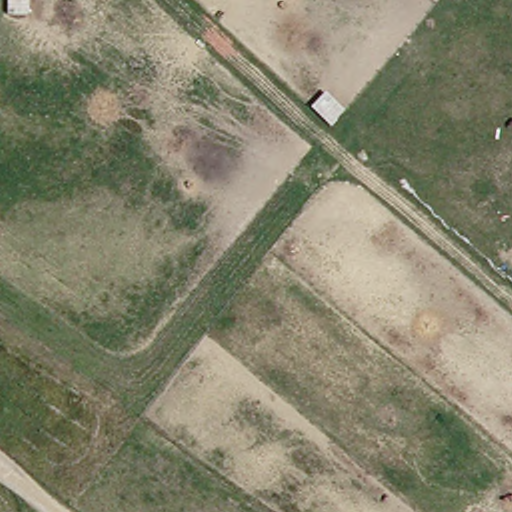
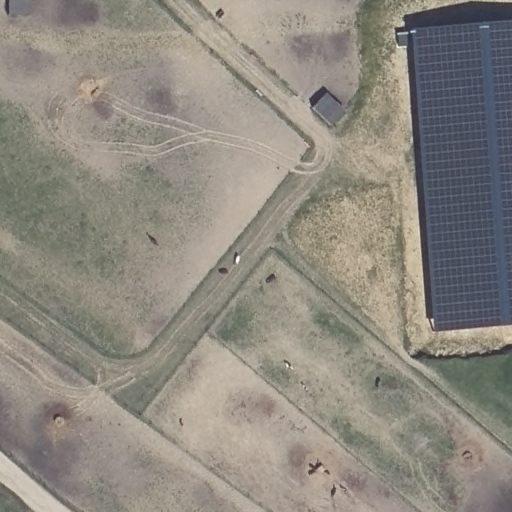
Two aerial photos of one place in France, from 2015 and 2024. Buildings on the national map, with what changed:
new [(512,23),(512,326),(434,332),(408,32),(512,23)]
new [(328,93),(346,111),(330,127),(312,109),(328,93)]

